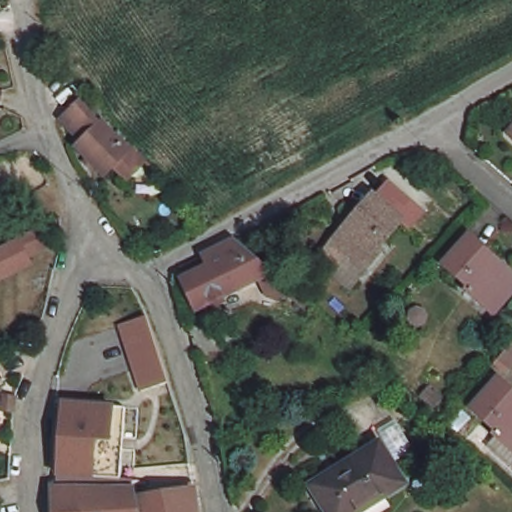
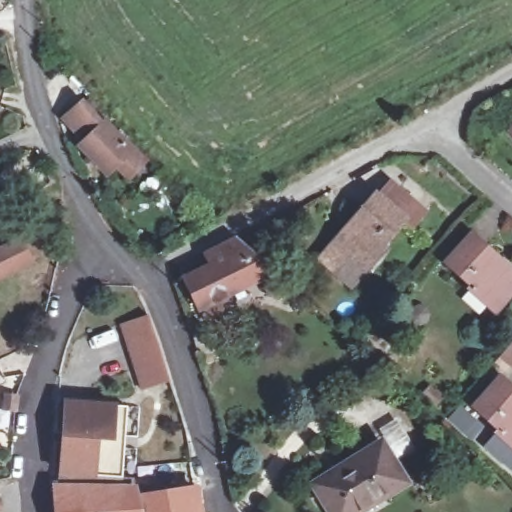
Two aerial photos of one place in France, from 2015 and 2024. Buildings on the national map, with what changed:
unchanged [(86,140),(64,118),(80,101),(104,124),(144,164),(130,178),(120,169),(117,166),(115,168),(107,174),(80,146),(86,140)]
unchanged [(115,126),(112,129),(103,118),(106,115),(123,102),(132,114),(115,126)]
unchanged [(361,286),(330,258),(340,246),(385,194),(414,219),(390,245),(394,249),(372,274),(361,286)]
unchanged [(43,228),(53,248),(35,258),(40,267),(0,286),(0,249),(43,228)]
unchanged [(512,271),(512,292),(495,312),(471,291),(475,287),(447,263),(472,235),(512,271)]
unchanged [(312,310),(299,297),(294,292),(282,297),(269,292),(263,278),(219,299),(225,312),(224,316),(214,321),(210,319),(204,306),(190,277),(194,275),(187,269),(184,268),(194,262),(199,259),(238,240),(240,239),(275,271),(279,270),(305,293),(319,305),(312,310)]
unchanged [(165,404),(157,406),(133,322),(154,317),(180,400),(165,404)]
unchanged [(503,433),(502,432),(505,429),(480,406),(505,378),(512,385),(512,461),(492,444),(503,433)]
unchanged [(5,394),(15,396),(13,410),(3,409),(5,394)]
unchanged [(62,481),(64,471),(65,471),(67,409),(127,414),(127,462),(137,462),(137,484),(139,497),(140,512),(62,512),(59,481),(62,481)]
unchanged [(325,484),(392,444),(416,483),(368,512),(343,512),(325,484)]
unchanged [(460,452),(467,457),(464,462),(457,456),(460,452)]
unchanged [(6,512),(0,512),(0,484),(6,512)]
unchanged [(139,497),(203,486),(206,512),(140,512),(139,497)]

